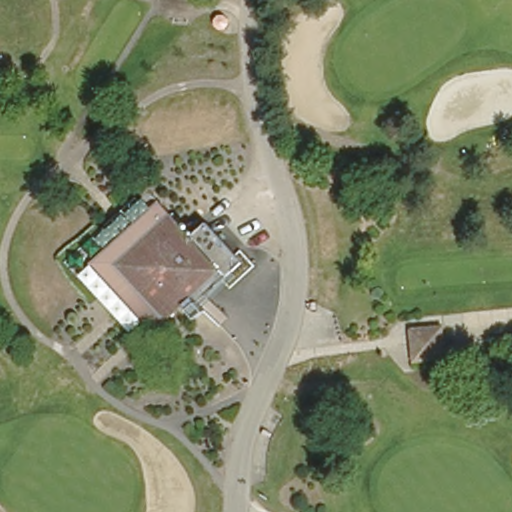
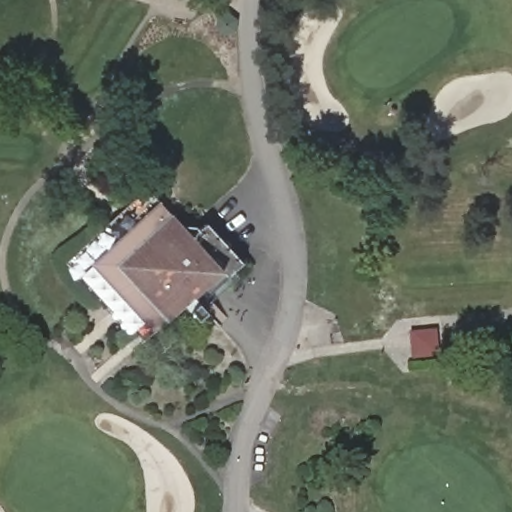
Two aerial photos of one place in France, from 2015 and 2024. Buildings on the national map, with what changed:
unchanged [(101,259),(156,208),(173,226),(207,264),(185,284),(177,291),(151,314),(101,259)]
unchanged [(414,364),(410,330),(448,326),(452,360),(414,364)]

